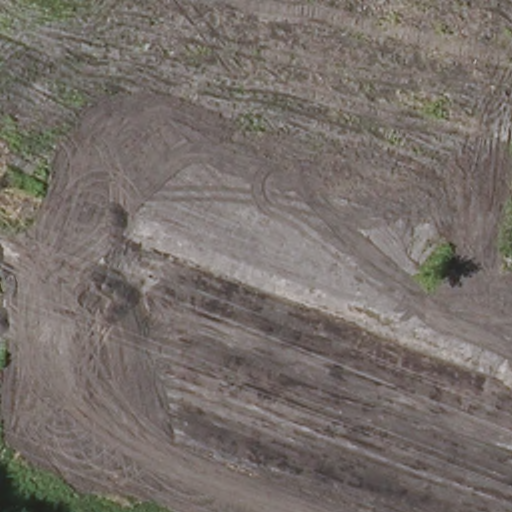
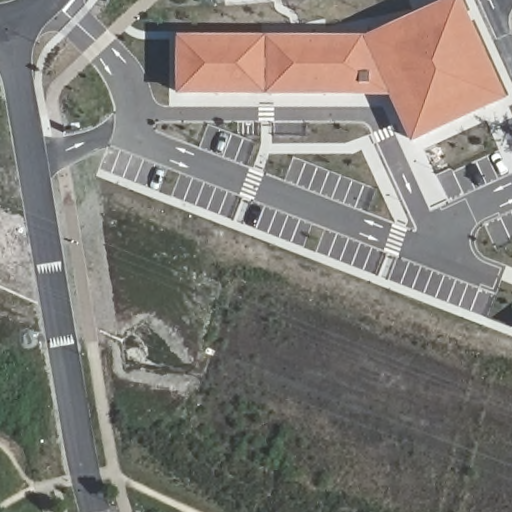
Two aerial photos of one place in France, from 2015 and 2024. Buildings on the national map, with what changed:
new [(272,46),(272,36),(363,36),(439,1),(449,0),(456,0),(500,95),(485,101),(488,108),(409,145),(388,96),(262,96),(262,46),(272,46)]

